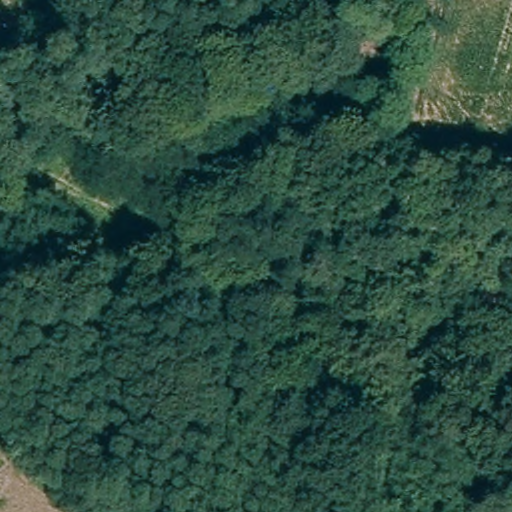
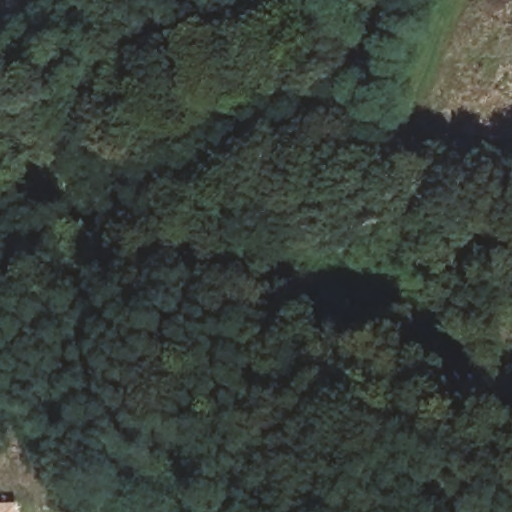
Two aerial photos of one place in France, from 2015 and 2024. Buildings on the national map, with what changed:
new [(20,504),(20,512),(0,512),(0,504),(20,504)]

